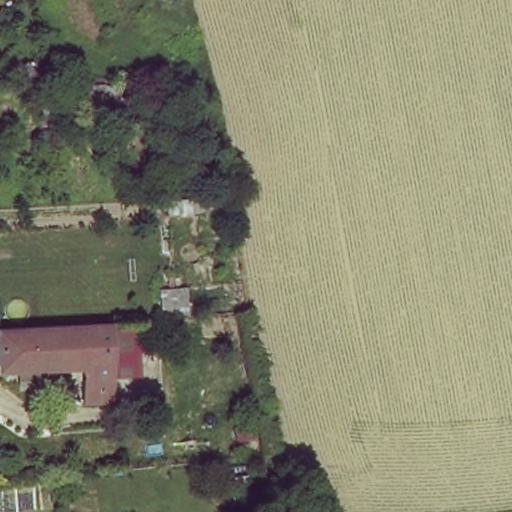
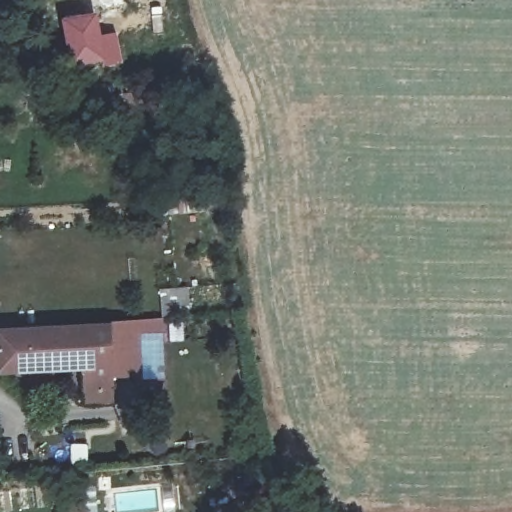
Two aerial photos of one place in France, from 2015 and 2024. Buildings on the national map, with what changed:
new [(96,13),(100,36),(116,32),(122,64),(72,71),(60,19),(96,13)]
unchanged [(191,320),(162,321),(161,285),(189,285),(191,320)]
unchanged [(116,392),(88,394),(86,368),(0,372),(0,339),(111,331),(116,392)]

